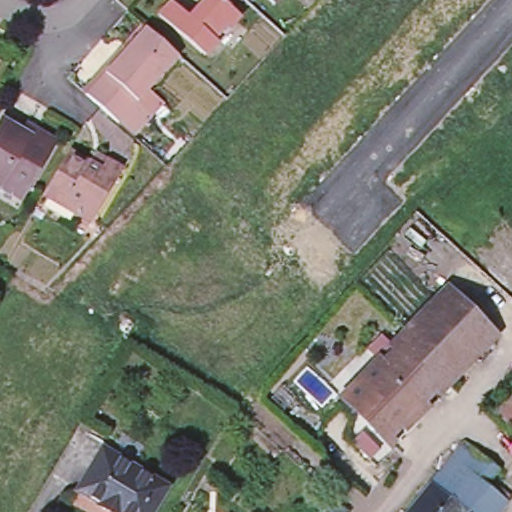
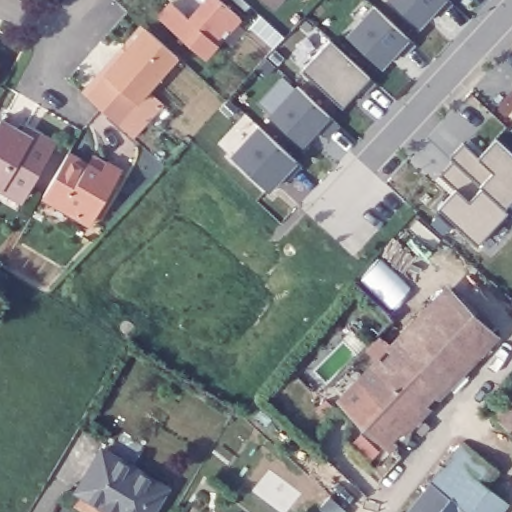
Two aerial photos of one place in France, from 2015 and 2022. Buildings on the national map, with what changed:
unchanged [(205,0),(223,0),(240,16),(225,33),(222,31),(215,39),(202,53),(160,14),(172,0),(190,16),(205,0)]
new [(452,2),(440,14),(435,9),(419,25),(391,0),(450,0),(452,2)]
new [(347,34),(374,5),(408,38),(415,46),(404,57),(397,52),(381,66),(347,34)]
unchanged [(134,108),(100,78),(142,31),(175,60),(134,108)]
new [(342,107),(303,70),(330,40),(377,83),(364,97),(357,91),(351,98),(342,107)]
new [(270,114),(297,85),(330,117),(339,124),(327,137),(319,129),(302,144),(270,114)]
new [(230,155),(258,126),(297,160),(302,165),(290,179),(285,174),(270,191),(230,155)]
unchanged [(2,190),(0,194),(0,127),(18,136),(21,131),(31,137),(53,149),(24,202),(2,190)]
new [(479,156),(495,139),(496,138),(512,153),(512,215),(509,211),(454,160),(450,157),(464,142),(479,156)]
unchanged [(98,164),(104,154),(119,162),(80,227),(32,200),(65,145),(98,164)]
new [(455,188),(440,174),(454,160),(509,211),(478,244),(438,207),(439,206),(455,188)]
unchanged [(492,334),(387,441),(345,400),(448,292),(492,334)]
unchanged [(512,397),(512,428),(497,413),(512,397)]
unchanged [(470,512),(452,496),(433,481),(465,441),(484,456),(500,469),(487,485),(507,502),(499,512),(470,512)]
unchanged [(160,512),(104,512),(102,510),(104,507),(83,494),(107,453),(172,492),(160,512)]
unchanged [(452,496),(470,512),(408,512),(433,481),(452,496)]

